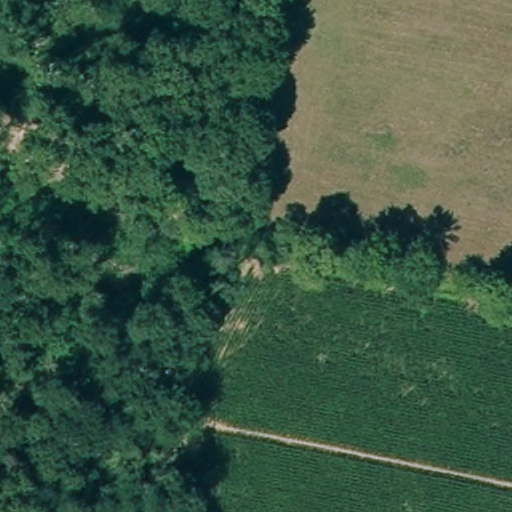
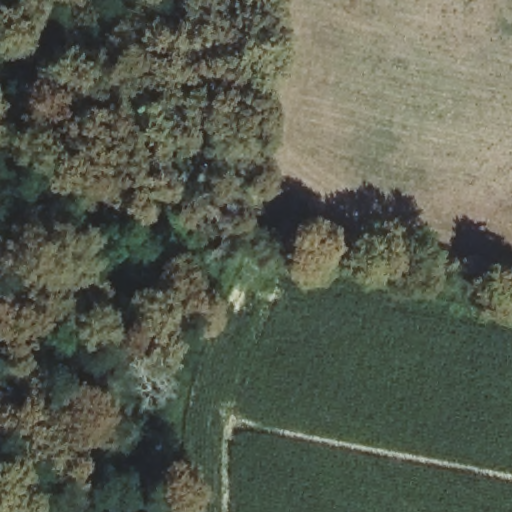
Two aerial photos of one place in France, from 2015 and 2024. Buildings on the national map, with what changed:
[]

